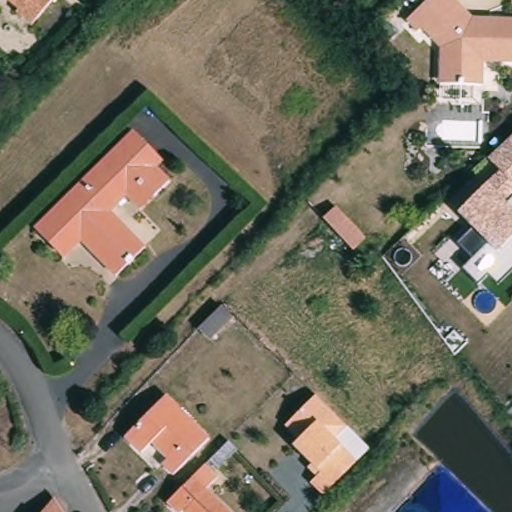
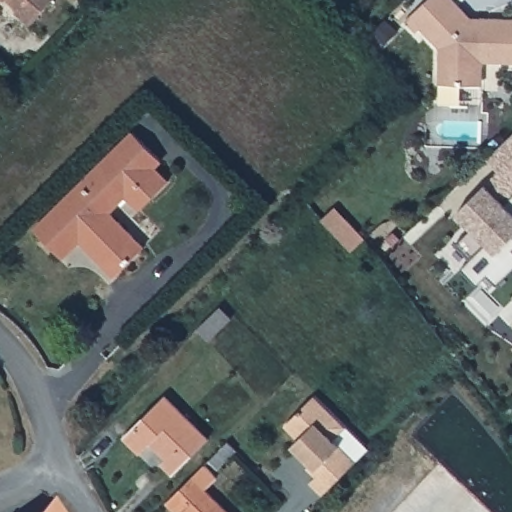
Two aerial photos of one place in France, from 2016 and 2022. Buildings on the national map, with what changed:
unchanged [(26,25),(11,12),(14,9),(4,0),(48,0),(26,25)]
unchanged [(388,4),(385,0),(393,0),(388,4)]
unchanged [(437,81),(437,70),(437,49),(416,29),(412,32),(402,22),(425,0),(451,0),(470,19),(476,20),(499,21),(512,21),(512,67),(481,68),(481,77),(481,82),(464,81),(451,80),(437,81)]
unchanged [(81,17),(86,11),(92,16),(86,22),(81,17)]
unchanged [(3,76),(1,77),(0,76),(0,61),(16,77),(11,81),(3,76)]
unchanged [(157,161),(151,168),(164,182),(149,197),(137,210),(122,196),(104,212),(139,248),(111,275),(75,243),(58,258),(31,230),(130,133),(157,161)]
unchanged [(487,273),(477,283),(463,268),(474,258),(458,242),(472,228),(456,212),(486,182),(498,171),(487,159),(512,136),(512,269),(497,283),(487,273)]
unchanged [(376,240),(357,221),(370,208),(389,228),(376,240)]
unchanged [(242,318),(220,340),(209,328),(230,307),(242,318)]
unchanged [(315,462),(296,443),(302,437),(289,423),(319,393),(351,424),(338,437),(360,459),(349,469),(326,492),(314,480),(320,474),(311,465),(315,462)]
unchanged [(207,439),(173,474),(162,463),(167,458),(151,442),(141,453),(126,437),(166,397),(207,439)]
unchanged [(224,447),(225,449),(231,454),(212,474),(205,467),(224,447)]
unchanged [(212,483),(201,494),(218,512),(168,512),(163,507),(200,471),(212,483)]
unchanged [(61,512),(43,512),(53,499),(61,512)]

